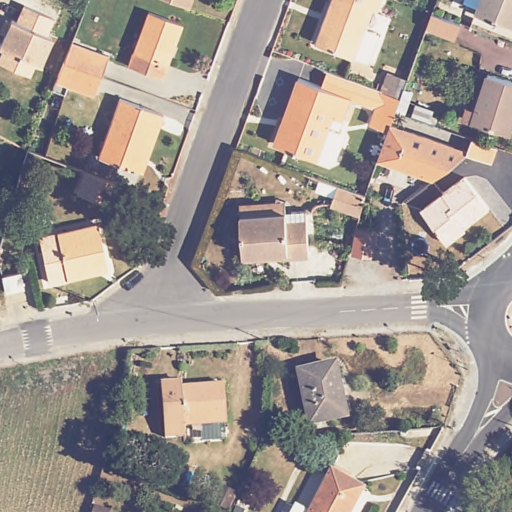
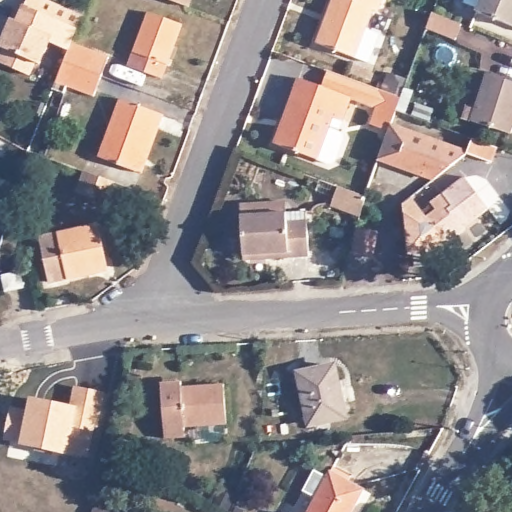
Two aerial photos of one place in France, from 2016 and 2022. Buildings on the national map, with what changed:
unchanged [(191,0),(190,2),(185,0),(191,0)]
unchanged [(365,64),(313,44),(329,0),(377,0),(373,12),(368,11),(361,30),(375,36),(365,64)]
unchanged [(512,0),(512,26),(480,14),(481,12),(468,7),(470,0),(512,0)]
unchanged [(4,34),(0,32),(0,30),(5,20),(9,22),(11,19),(16,21),(23,5),(52,18),(45,34),(50,36),(38,64),(33,62),(28,75),(0,63),(0,55),(3,49),(0,47),(0,42),(4,34)]
unchanged [(131,65),(150,9),(181,21),(162,76),(131,65)]
unchanged [(428,27),(434,11),(463,22),(457,37),(428,27)]
unchanged [(68,44),(105,59),(98,77),(91,97),(52,84),(61,63),(68,44)]
unchanged [(340,129),(343,135),(335,157),(330,161),(275,141),(299,76),(322,83),(327,67),(402,95),(392,122),(390,127),(370,120),(376,104),(350,95),(342,117),(332,114),(328,125),(340,129)]
unchanged [(481,110),(493,73),(512,79),(512,132),(477,121),(467,118),(471,107),(481,110)]
unchanged [(150,124),(135,167),(99,154),(121,96),(164,111),(157,127),(150,124)]
unchanged [(420,116),(415,114),(420,101),(433,105),(428,119),(420,116)]
unchanged [(466,148),(470,138),(497,147),(492,162),(465,154),(431,182),(376,162),(390,127),(392,122),(466,148)]
new [(81,171),(111,182),(104,201),(74,190),(81,171)]
unchanged [(467,232),(448,249),(431,227),(422,214),(443,197),(465,179),(490,210),(465,231),(467,232)]
unchanged [(334,202),(341,185),(367,194),(362,213),(334,202)]
unchanged [(243,212),(243,204),(288,201),(289,209),(289,211),(307,210),(308,217),(310,254),(245,256),(243,212)]
unchanged [(88,272),(48,282),(40,251),(38,239),(97,224),(106,258),(108,267),(88,272)]
unchanged [(7,292),(4,276),(21,272),(24,288),(7,292)]
unchanged [(308,426),(298,374),(332,367),(343,417),(308,426)]
unchanged [(187,430),(188,439),(168,440),(165,386),(185,385),(185,390),(227,387),(230,427),(187,430)]
new [(10,406),(26,409),(28,397),(69,405),(72,386),(106,392),(98,428),(95,427),(88,457),(68,451),(67,455),(20,443),(3,440),(10,406)]
unchanged [(304,506),(312,511),(333,471),(367,488),(354,512),(300,512),(304,506)]
unchanged [(218,506),(226,487),(239,493),(231,511),(218,506)]

